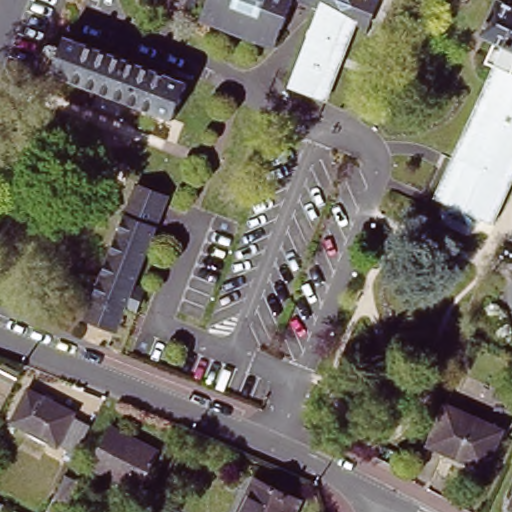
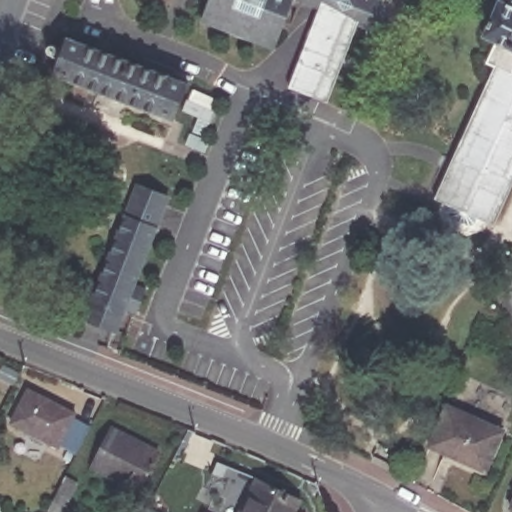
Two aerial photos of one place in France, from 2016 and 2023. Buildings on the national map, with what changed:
unchanged [(210,0),(242,0),(229,33),(202,22),(210,0)]
unchanged [(242,0),(324,0),(318,15),(291,4),(274,51),(229,33),(242,0)]
unchanged [(324,109),(288,95),(318,15),(324,0),(364,0),(324,109)]
unchanged [(435,204),(495,70),(507,50),(480,38),(500,0),(512,0),(512,189),(493,229),(435,204)]
unchanged [(70,36),(190,83),(175,122),(53,74),(69,36),(70,36)]
unchanged [(137,317),(125,312),(117,333),(85,321),(137,188),(169,201),(135,286),(147,291),(137,317)]
unchanged [(54,447),(7,423),(24,391),(70,414),(69,417),(85,426),(72,452),(55,444),(54,447)]
unchanged [(502,436),(484,477),(427,452),(445,411),(502,436)]
unchanged [(154,452),(134,491),(85,466),(105,428),(154,452)]
unchanged [(47,512),(63,480),(77,486),(64,512),(47,512)]
unchanged [(302,502),(297,512),(245,512),(260,482),(302,502)]
unchanged [(510,507),(512,504),(512,508),(510,507)]

